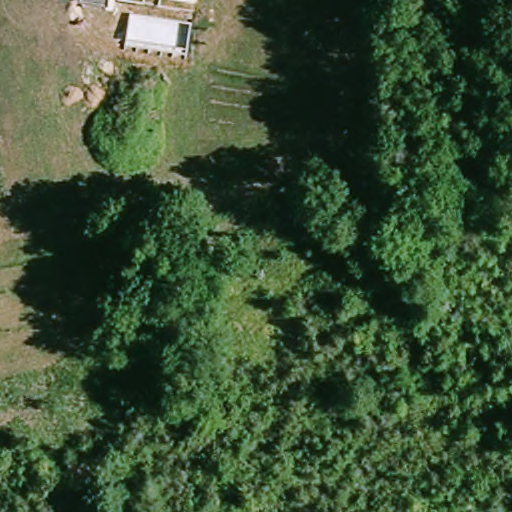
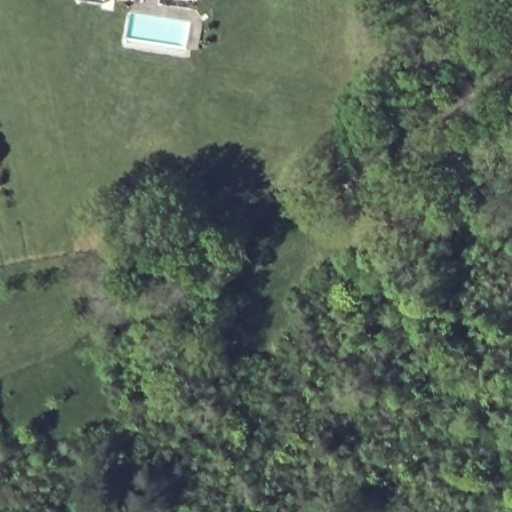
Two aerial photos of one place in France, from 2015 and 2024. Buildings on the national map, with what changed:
unchanged [(101,0),(108,0),(108,1),(101,0)]

